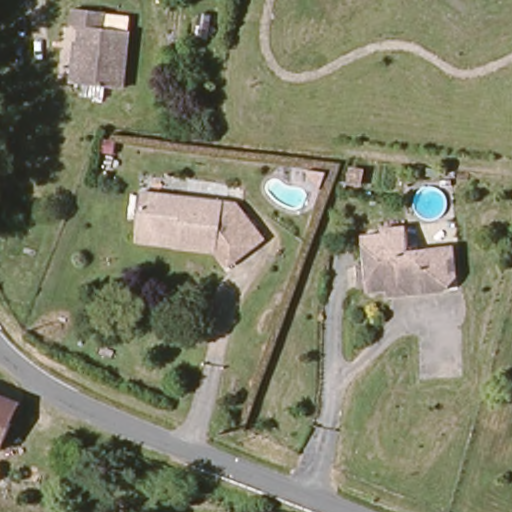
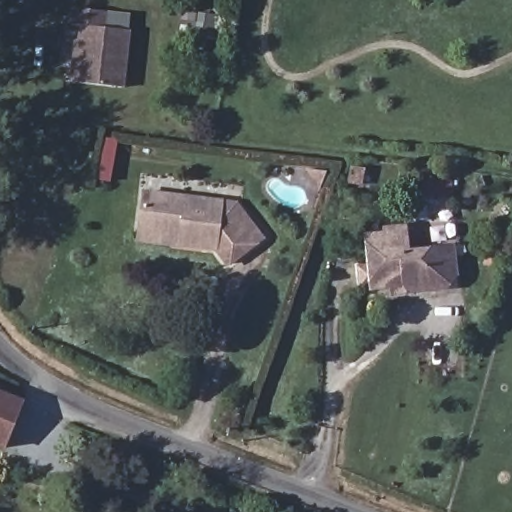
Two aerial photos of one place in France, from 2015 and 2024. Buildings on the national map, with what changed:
unchanged [(123,91),(77,85),(84,26),(75,25),(77,7),(107,11),(105,28),(130,32),(123,91)]
unchanged [(149,190),(246,207),(267,237),(237,263),(234,266),(222,252),(184,245),(140,237),(141,225),(149,190)]
unchanged [(360,245),(370,244),(370,225),(408,224),(410,250),(456,246),(457,276),(445,289),(418,291),(412,285),(391,288),(390,294),(371,295),(371,282),(361,283),(360,245)]
unchanged [(6,449),(0,446),(0,400),(23,412),(6,449)]

